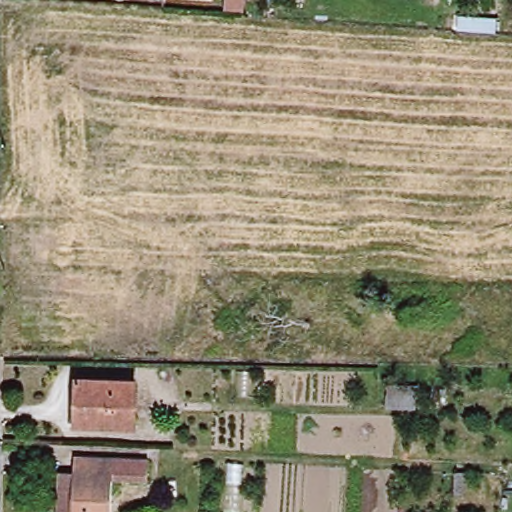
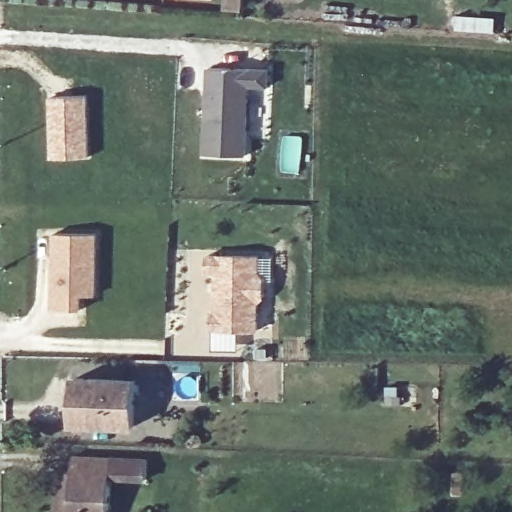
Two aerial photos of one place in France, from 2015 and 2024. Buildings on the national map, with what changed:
unchanged [(229,0),(245,0),(245,1),(229,0)]
new [(208,68),(248,70),(248,86),(245,156),(205,155),(208,85),(208,68)]
new [(85,150),(50,150),(51,87),(86,88),(85,150)]
demolished [(53,104),(52,131),(12,129),(14,101),(53,104)]
demolished [(79,240),(89,240),(89,267),(16,269),(15,224),(79,222),(79,240)]
demolished [(107,222),(117,226),(117,266),(89,267),(89,240),(79,240),(79,222),(107,222)]
new [(90,288),(75,288),(75,303),(48,302),(49,225),(91,226),(90,288)]
demolished [(256,234),(256,269),(234,268),(235,233),(256,234)]
new [(264,295),(257,301),(255,330),(209,327),(211,310),(215,310),(218,269),(208,268),(209,252),(260,255),(259,272),(265,278),(264,295)]
unchanged [(134,381),(133,425),(75,423),(77,379),(134,381)]
unchanged [(110,482),(108,512),(52,512),(55,471),(72,473),(73,454),(145,458),(146,482),(110,482)]

